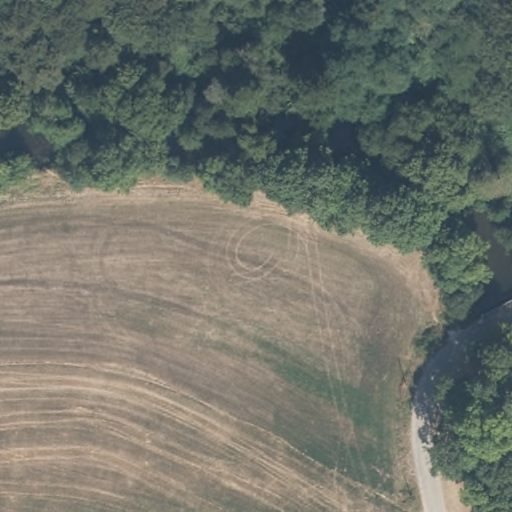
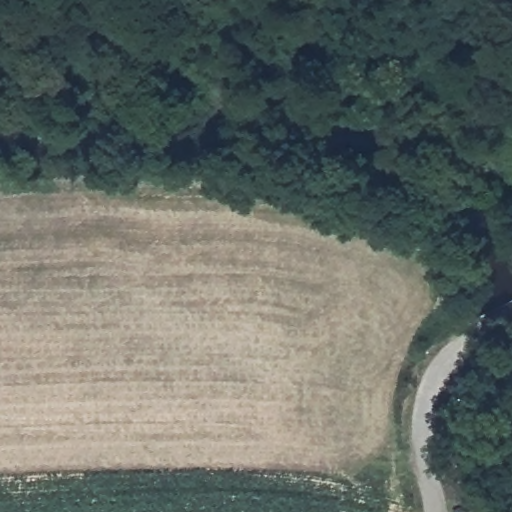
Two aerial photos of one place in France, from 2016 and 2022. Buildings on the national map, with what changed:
[]

